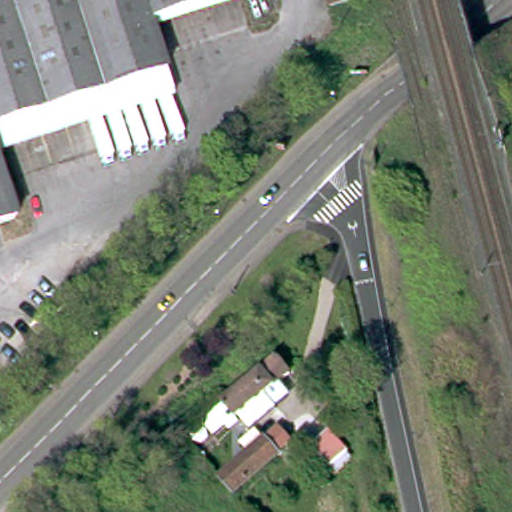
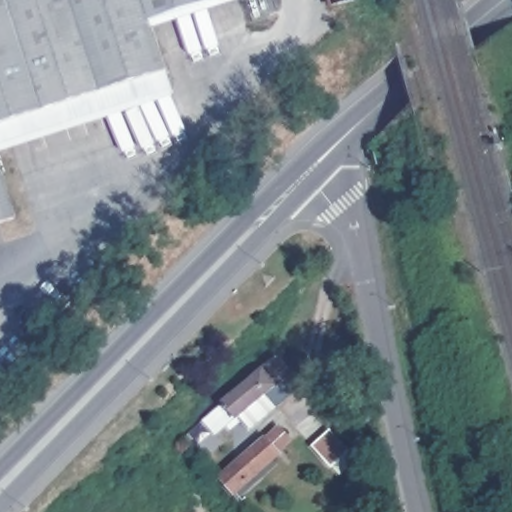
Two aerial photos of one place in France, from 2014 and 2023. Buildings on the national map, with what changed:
unchanged [(166,85),(171,97),(145,107),(0,152),(0,0),(239,0),(149,28),(166,85)]
unchanged [(329,7),(328,0),(358,0),(358,1),(329,7)]
unchanged [(0,227),(0,173),(15,222),(0,227)]
unchanged [(216,401),(233,387),(232,386),(271,353),(270,352),(284,340),(299,357),(284,370),(289,373),(279,382),(287,391),(260,413),(248,400),(246,402),(245,401),(229,415),(216,401)]
unchanged [(219,477),(265,437),(279,452),(233,493),(219,477)]

